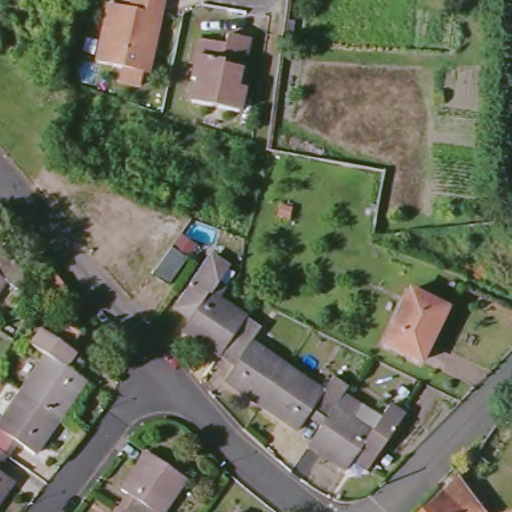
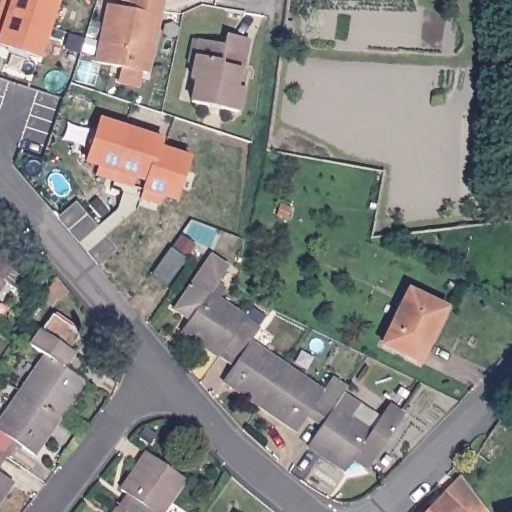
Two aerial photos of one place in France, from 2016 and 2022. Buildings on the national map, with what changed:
new [(0,4),(1,0),(58,0),(40,60),(0,46),(0,4)]
unchanged [(103,65),(115,7),(138,11),(139,4),(129,1),(129,0),(170,0),(166,16),(162,16),(157,42),(160,44),(154,75),(103,65)]
unchanged [(192,103),(197,81),(192,80),(201,41),(225,46),(227,35),(249,41),(242,72),(239,72),(236,89),(243,90),(238,112),(192,103)]
new [(175,202),(164,199),(160,205),(140,199),(144,183),(135,181),(132,187),(97,176),(98,168),(83,163),(99,117),(163,140),(161,146),(190,157),(175,202)]
unchanged [(169,249),(185,261),(167,287),(150,277),(169,249)]
unchanged [(16,287),(4,278),(0,284),(0,253),(27,272),(16,287)]
unchanged [(218,358),(180,332),(188,320),(175,311),(210,257),(225,268),(216,282),(225,288),(217,301),(244,319),(222,352),(218,358)]
unchanged [(65,293),(60,301),(57,299),(52,305),(42,298),(55,281),(65,293)]
unchanged [(382,346),(407,292),(444,310),(428,343),(421,340),(412,360),(382,346)]
unchanged [(20,393),(45,357),(30,347),(52,316),(80,335),(69,351),(75,355),(74,358),(83,365),(75,377),(84,384),(59,420),(20,393)]
unchanged [(244,319),(259,328),(250,343),(286,368),(260,407),(222,381),(235,362),(222,352),(244,319)]
unchanged [(334,407),(320,427),(307,417),(297,432),(260,407),(286,368),(322,392),(332,378),(347,388),(334,407)]
unchanged [(0,454),(0,421),(20,393),(59,420),(34,457),(12,442),(3,456),(1,455),(0,454)]
unchanged [(320,427),(334,407),(371,431),(387,407),(402,417),(367,470),(352,460),(345,472),(307,447),(320,427)]
unchanged [(509,409),(512,411),(512,422),(504,416),(509,409)]
unchanged [(0,456),(0,454),(1,455),(0,456)]
unchanged [(121,493),(147,455),(185,481),(163,512),(126,512),(134,501),(121,493)]
unchanged [(0,502),(0,475),(13,484),(0,502)]
unchanged [(427,512),(462,478),(486,512),(427,512)]

